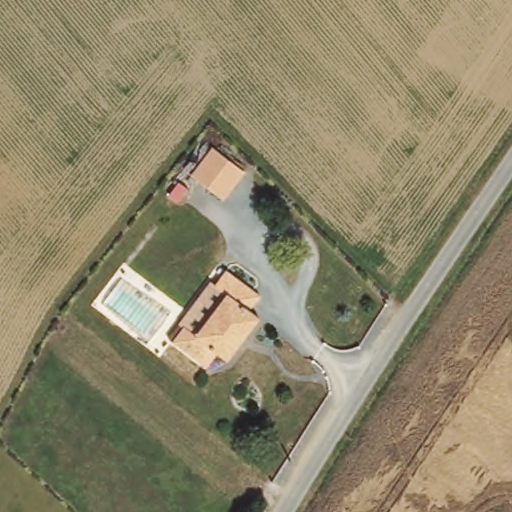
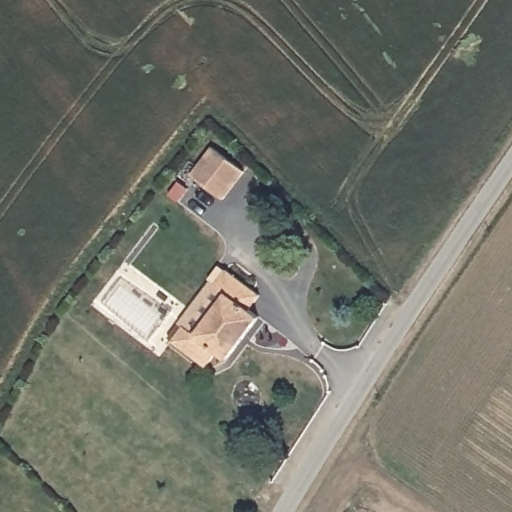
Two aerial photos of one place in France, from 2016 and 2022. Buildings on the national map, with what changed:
unchanged [(195,179),(215,151),(248,174),(227,202),(195,179)]
unchanged [(161,340),(173,324),(184,333),(199,312),(214,292),(202,283),(213,268),(248,292),(237,307),(247,314),(232,336),(216,357),(206,350),(196,365),(161,340)]

